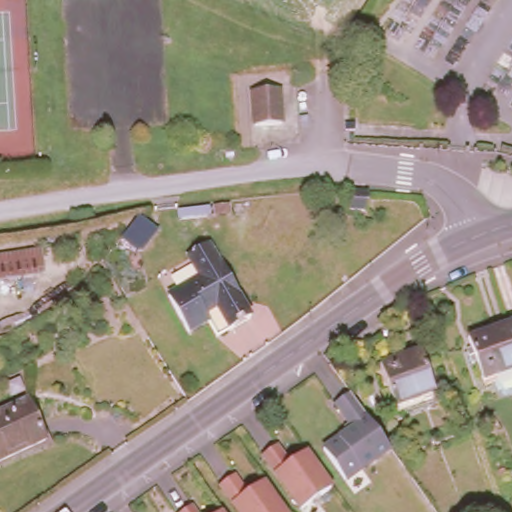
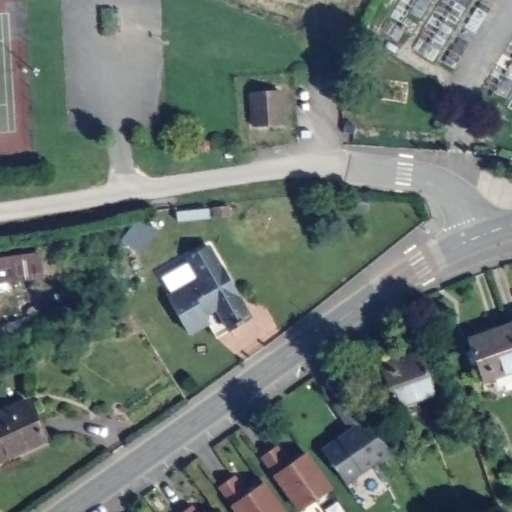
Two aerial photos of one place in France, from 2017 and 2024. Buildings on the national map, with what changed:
unchanged [(281,89),(284,124),(256,124),(254,90),(281,89)]
unchanged [(342,200),(341,211),(330,211),(331,199),(342,200)]
unchanged [(144,225),(128,247),(119,240),(136,219),(144,225)]
unchanged [(213,317),(193,328),(172,294),(191,284),(190,281),(206,271),(196,254),(212,244),(256,313),(236,325),(223,333),(213,317)]
unchanged [(43,280),(0,288),(0,259),(38,253),(43,280)]
unchanged [(512,318),(512,325),(510,319),(512,318)]
unchanged [(485,376),(470,333),(510,319),(512,325),(512,367),(485,376)]
unchanged [(421,355),(436,399),(395,413),(379,370),(421,355)]
unchanged [(319,449),(348,430),(329,407),(346,395),(389,454),(345,483),(319,449)]
unchanged [(0,460),(0,411),(25,399),(43,441),(0,460)]
unchanged [(256,457),(274,447),(285,462),(304,451),(328,487),(294,510),(256,457)]
unchanged [(213,489),(233,478),(246,494),(263,483),(282,512),(229,512),(213,489)]
unchanged [(191,509),(193,512),(183,512),(191,509)]

